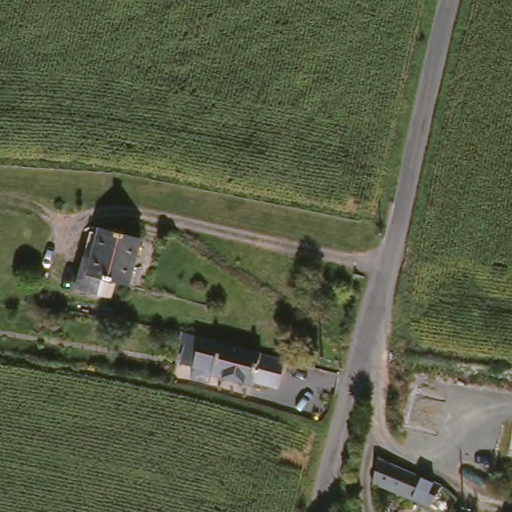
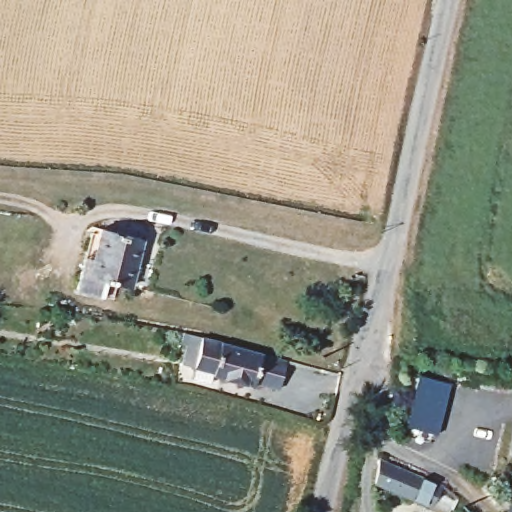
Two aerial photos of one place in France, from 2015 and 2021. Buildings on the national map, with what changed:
unchanged [(146,235),(130,283),(115,279),(109,296),(74,285),(74,284),(84,255),(92,258),(104,222),(146,235)]
unchanged [(286,387),(197,367),(182,363),(186,343),(180,341),(182,330),(203,335),(294,355),(286,387)]
new [(451,385),(437,434),(404,426),(418,377),(451,385)]
unchanged [(441,510),(421,500),(365,474),(375,452),(432,477),(453,487),(441,510)]

